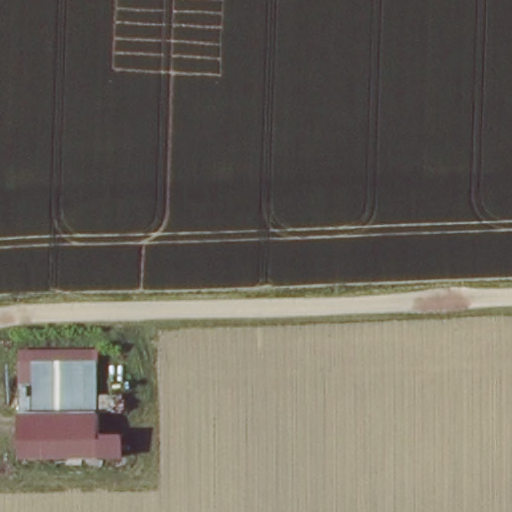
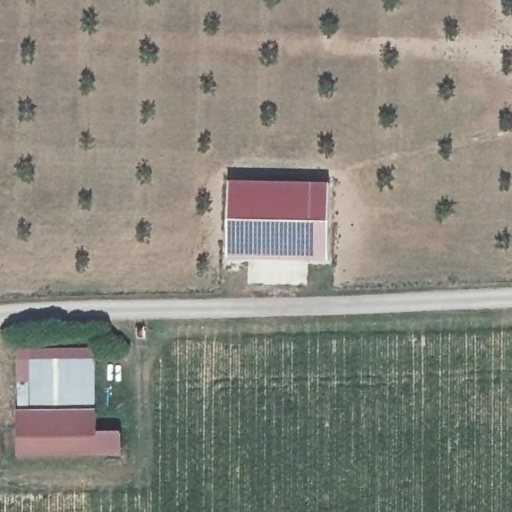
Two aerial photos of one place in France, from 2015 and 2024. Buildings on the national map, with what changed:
new [(227,259),(228,182),(328,185),(327,263),(227,259)]
unchanged [(96,351),(100,436),(125,434),(126,456),(21,461),(16,354),(96,351)]

